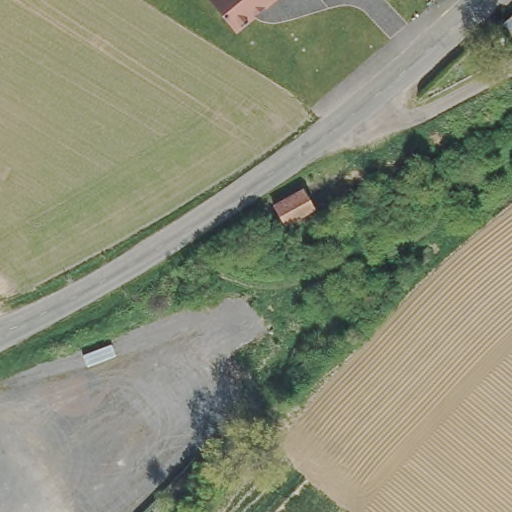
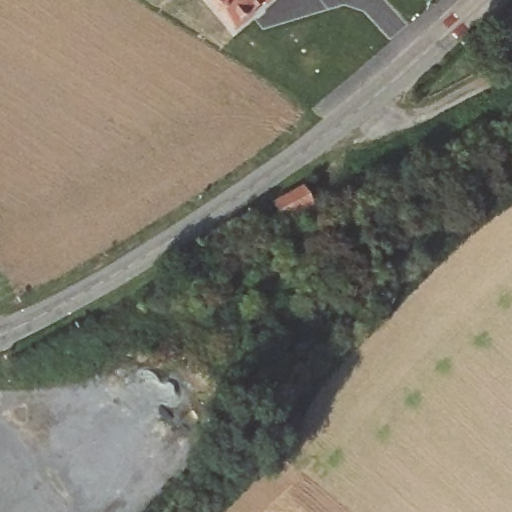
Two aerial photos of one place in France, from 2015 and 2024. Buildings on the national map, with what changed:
unchanged [(208,0),(275,0),(232,33),(208,0)]
unchanged [(418,88),(426,95),(417,102),(410,95),(418,88)]
unchanged [(275,206),(299,187),(313,205),(287,223),(275,206)]

